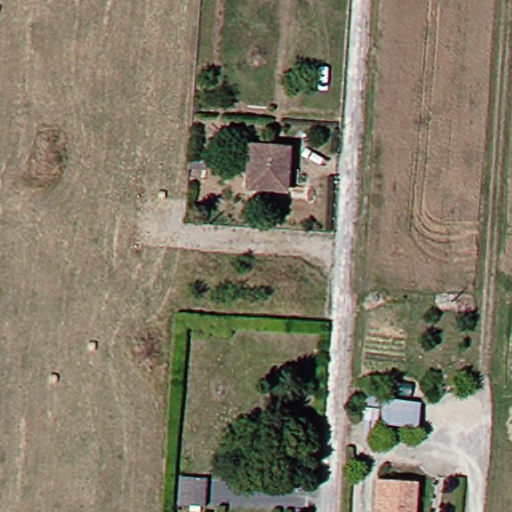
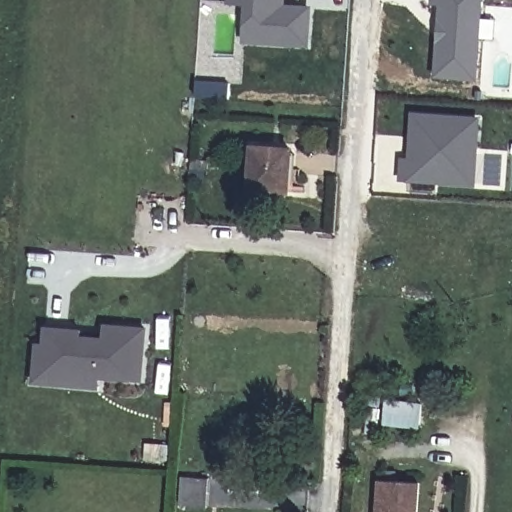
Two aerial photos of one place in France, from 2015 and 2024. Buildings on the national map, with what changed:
new [(311,5),(310,48),(242,44),(243,5),(227,4),(227,0),(286,0),(285,4),(311,5)]
new [(430,4),(431,0),(482,0),(477,81),(434,77),(437,5),(430,4)]
new [(400,158),(408,158),(410,113),(480,116),(475,187),(399,182),(400,158)]
unchanged [(286,187),(297,187),(297,194),(278,194),(243,190),(245,149),(281,151),(281,155),(288,155),(286,187)]
unchanged [(214,162),(214,170),(197,168),(197,160),(214,162)]
new [(41,343),(43,327),(64,329),(78,329),(77,337),(99,338),(100,324),(142,328),(137,394),(96,392),(95,392),(95,387),(65,384),(31,381),(34,343),(41,343)]
unchanged [(424,399),(424,426),(382,423),(384,399),(424,399)]
unchanged [(209,482),(209,507),(181,504),(183,479),(209,482)]
unchanged [(372,484),(413,487),(412,512),(371,512),(372,484)]

